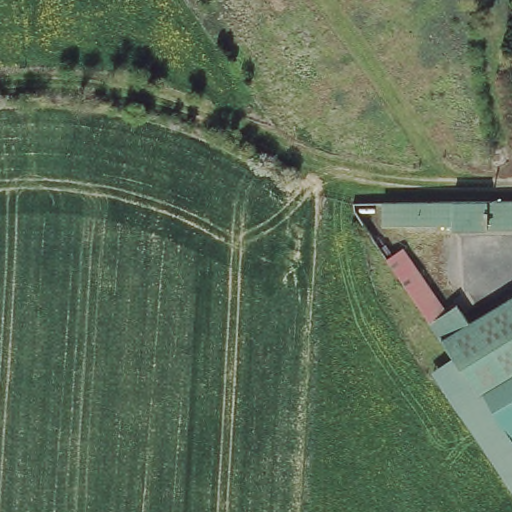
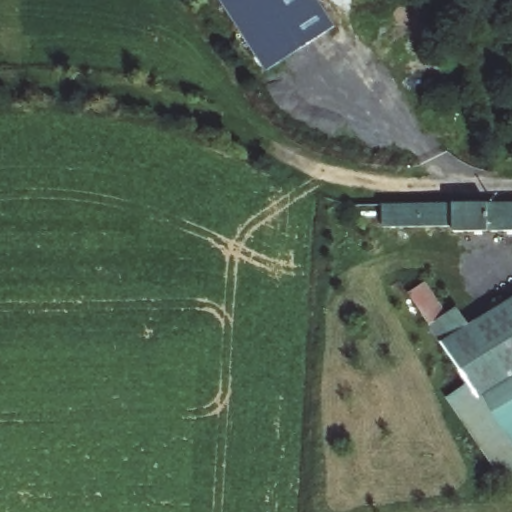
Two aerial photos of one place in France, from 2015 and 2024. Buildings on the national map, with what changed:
new [(334,27),(265,71),(219,0),(317,0),(334,27)]
unchanged [(510,201),(510,228),(460,231),(460,219),(459,204),(510,201)]
unchanged [(512,201),(512,228),(510,228),(510,201),(512,201)]
unchanged [(459,204),(460,219),(460,231),(392,235),(390,207),(459,204)]
unchanged [(387,263),(393,273),(400,268),(446,336),(457,328),(465,339),(505,395),(512,390),(512,462),(380,268),(387,263)]
unchanged [(512,308),(512,390),(505,395),(465,339),(512,308)]

